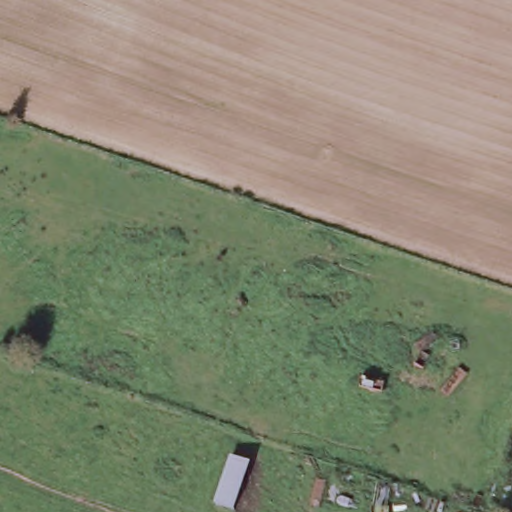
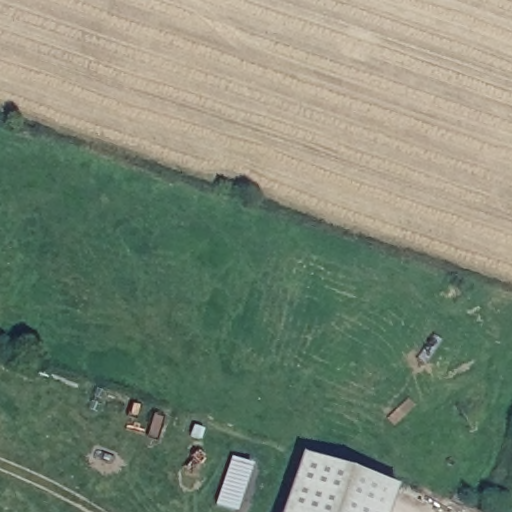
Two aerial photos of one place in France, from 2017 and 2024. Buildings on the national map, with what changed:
new [(301,455),(396,488),(388,512),(280,512),(301,455)]
unchanged [(216,506),(231,457),(253,465),(238,512),(235,512),(216,506)]

